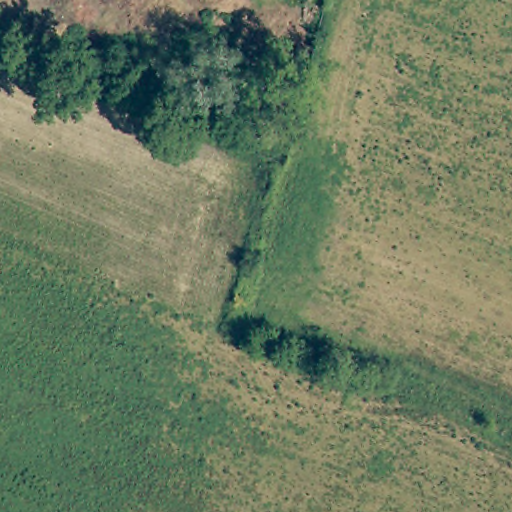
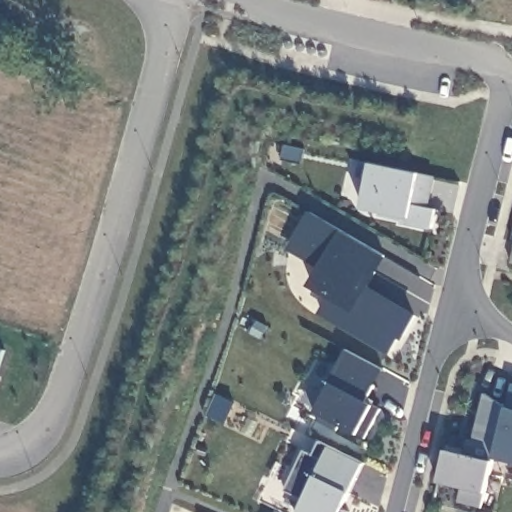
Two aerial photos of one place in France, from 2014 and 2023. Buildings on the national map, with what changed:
new [(408,224),(410,217),(362,208),(370,163),(419,173),(435,176),(430,207),(435,208),(431,228),(408,224)]
new [(318,312),(327,297),(307,285),(318,266),(285,247),(309,210),(340,229),(385,257),(369,285),(417,314),(401,340),(397,337),(387,355),(318,312)]
new [(512,262),(510,262),(512,256),(512,262)]
new [(0,367),(0,346),(6,348),(0,367)]
new [(368,402),(374,404),(384,408),(366,438),(359,434),(341,425),(337,430),(319,420),(322,414),(314,410),(329,381),(347,347),(384,369),(368,402)]
new [(492,462),(484,494),(481,507),(458,502),(459,486),(437,481),(445,448),(464,453),(467,438),(472,440),(484,392),(507,407),(512,408),(512,461),(494,457),(492,462)]
new [(283,490),(305,449),(313,453),(319,440),(330,445),(365,462),(340,508),(349,512),(297,512),(304,498),(283,490)]

